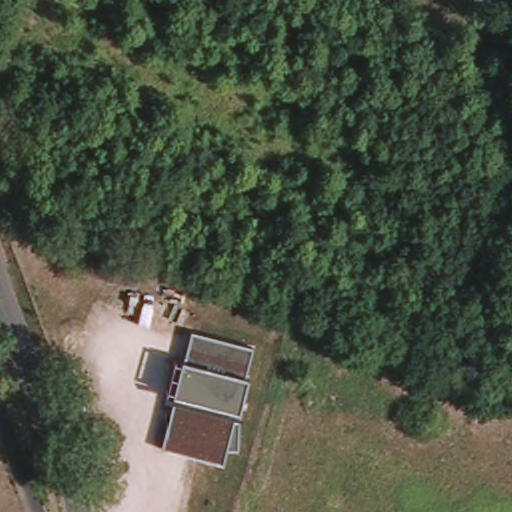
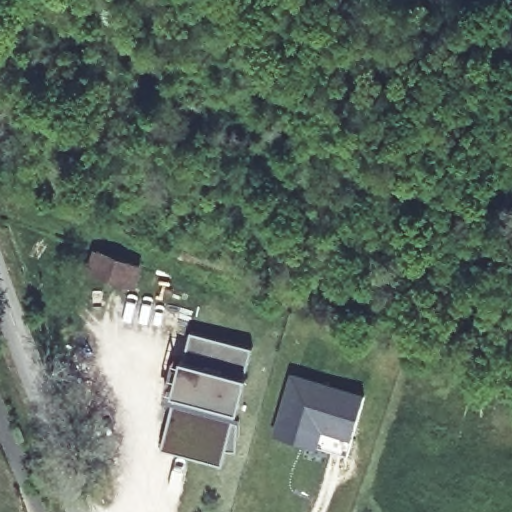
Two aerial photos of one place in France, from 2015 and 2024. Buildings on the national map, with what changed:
unchanged [(95,254),(139,268),(132,290),(88,276),(95,254)]
unchanged [(166,391),(175,357),(181,358),(184,359),(191,330),(251,344),(245,373),(247,374),(239,408),(236,407),(234,418),(239,418),(239,447),(227,446),(225,461),(164,447),(176,393),(174,392),(166,391)]
unchanged [(71,367),(76,385),(64,387),(58,372),(71,367)]
new [(323,429),(319,447),(274,434),(291,371),(365,392),(354,438),(323,429)]

